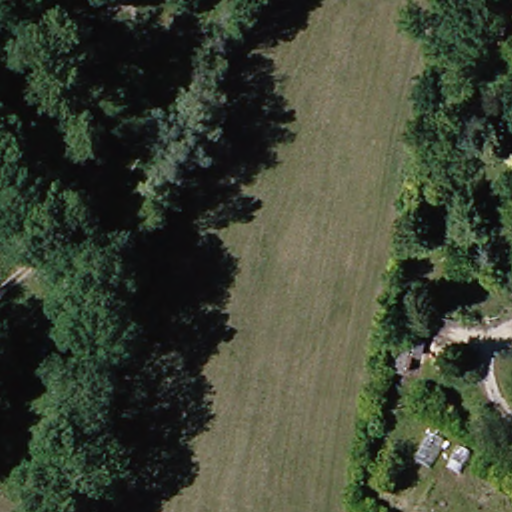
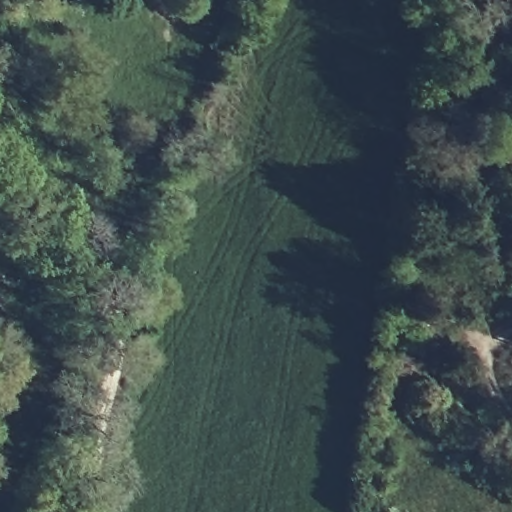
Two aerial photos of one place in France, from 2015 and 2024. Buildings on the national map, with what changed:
unchanged [(428,358),(425,370),(416,368),(406,403),(385,397),(397,349),(428,358)]

